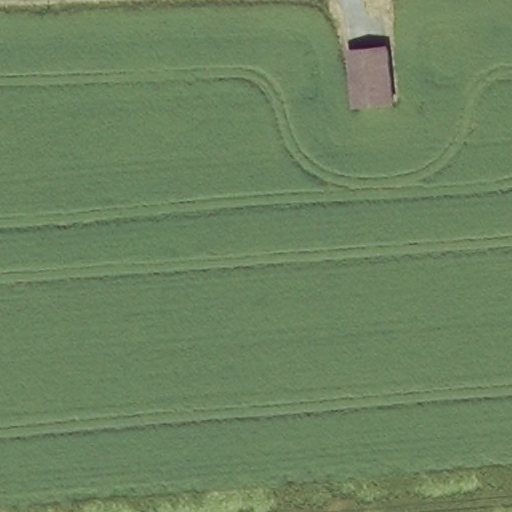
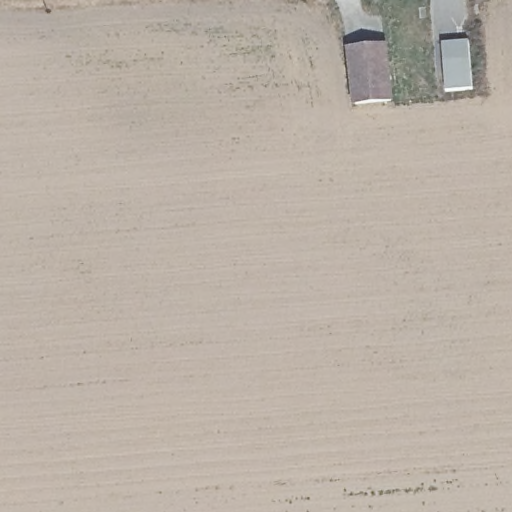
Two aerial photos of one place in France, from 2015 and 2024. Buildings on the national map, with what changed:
new [(442,44),(468,41),(473,90),(446,91),(442,44)]
unchanged [(354,105),(349,51),(384,48),(389,100),(354,105)]

